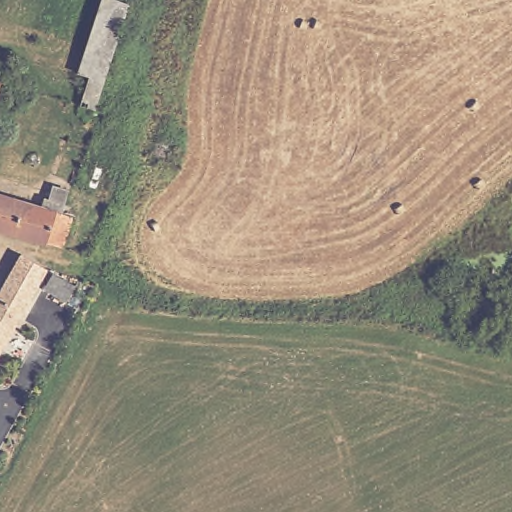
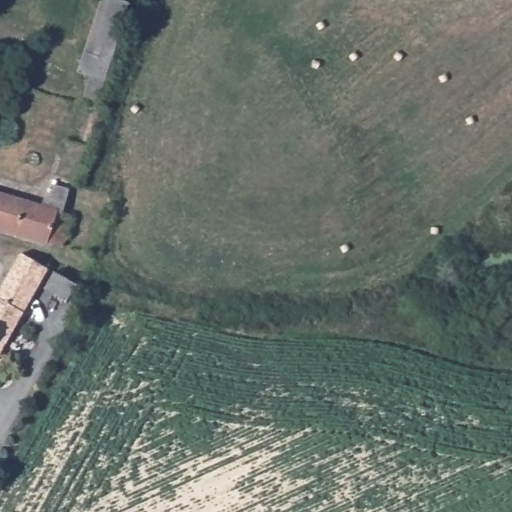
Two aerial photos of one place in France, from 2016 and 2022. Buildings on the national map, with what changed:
unchanged [(90,80),(115,0),(141,11),(116,88),(90,80)]
unchanged [(4,84),(0,95),(0,83),(4,84)]
unchanged [(71,192),(65,216),(74,219),(67,245),(58,251),(31,242),(0,233),(0,196),(47,209),(54,187),(71,192)]
unchanged [(11,282),(28,251),(53,264),(35,295),(19,323),(16,328),(0,355),(0,301),(11,282)]

